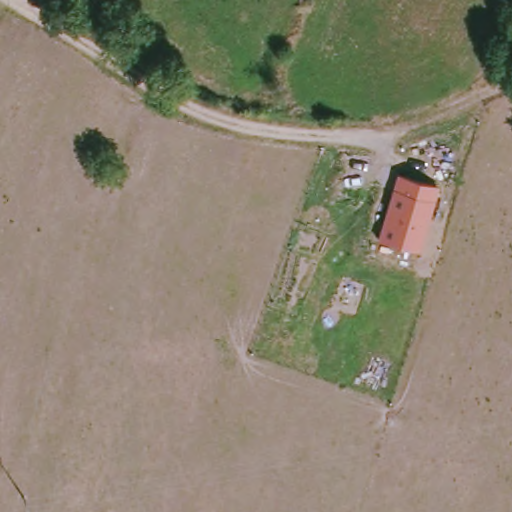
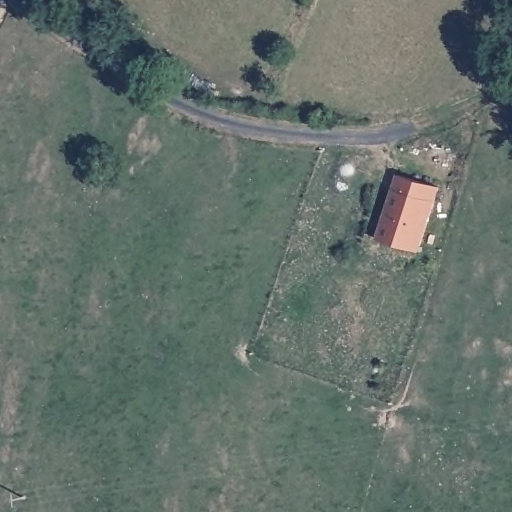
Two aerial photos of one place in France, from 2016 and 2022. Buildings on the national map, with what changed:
unchanged [(441,190),(421,253),(380,240),(400,178),(441,190)]

